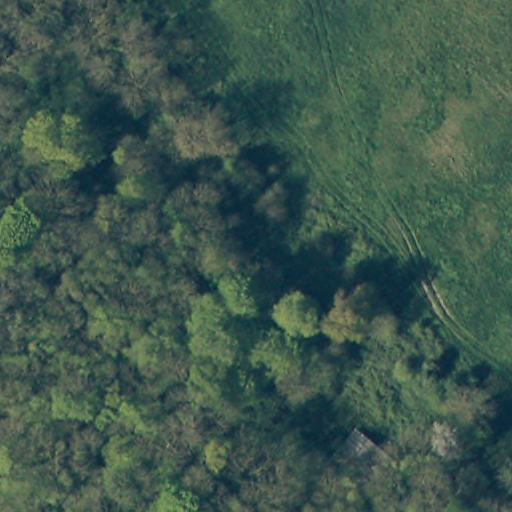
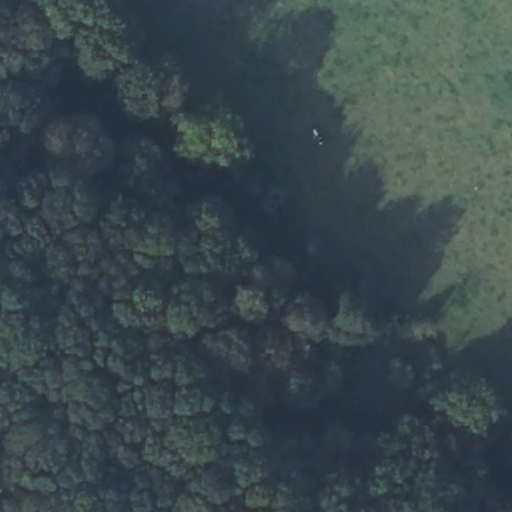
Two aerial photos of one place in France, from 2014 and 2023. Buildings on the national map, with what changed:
unchanged [(395,463),(363,504),(323,469),(355,429),(395,463)]

